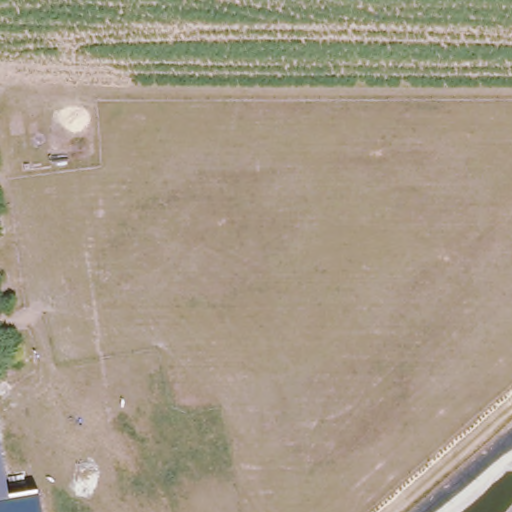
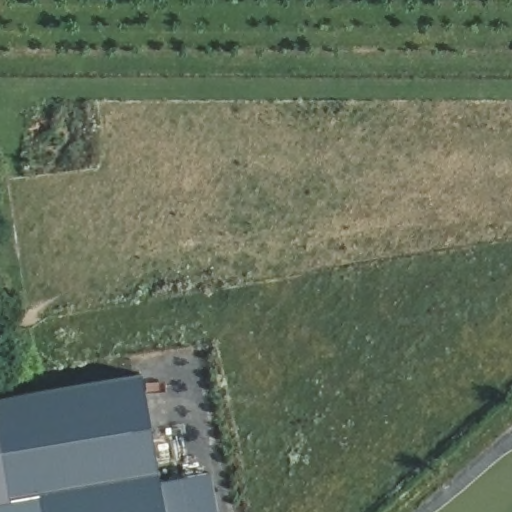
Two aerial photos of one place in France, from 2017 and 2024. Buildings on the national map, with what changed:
new [(165,475),(171,512),(0,512),(0,394),(146,370),(165,475)]
demolished [(39,491),(43,512),(0,512),(0,450),(8,497),(39,491)]
new [(209,467),(217,512),(171,512),(165,475),(209,467)]

